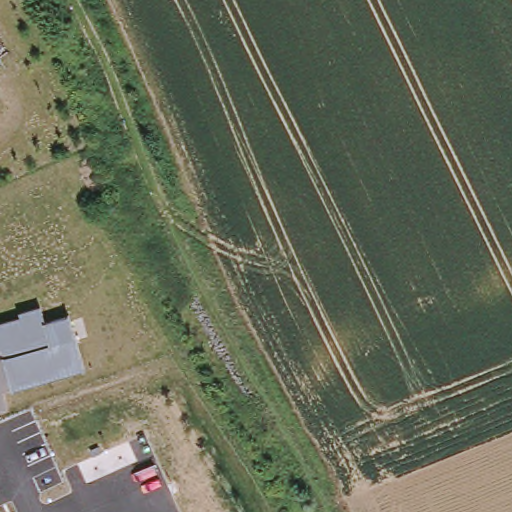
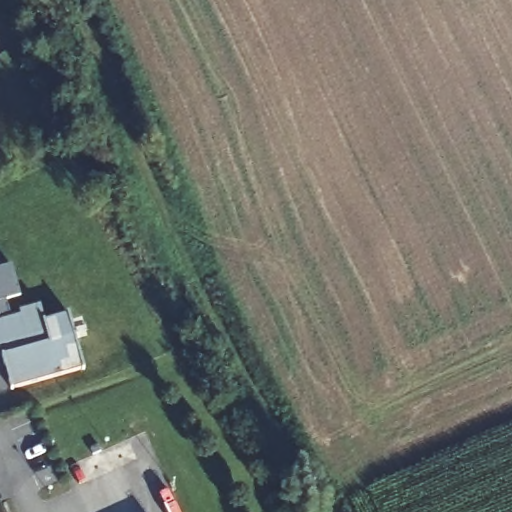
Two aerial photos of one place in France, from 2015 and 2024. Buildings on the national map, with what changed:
new [(11,267),(20,298),(6,302),(11,317),(0,320),(0,270),(11,267)]
unchanged [(19,315),(18,311),(40,305),(45,320),(68,315),(83,367),(10,388),(0,356),(0,320),(19,315)]

